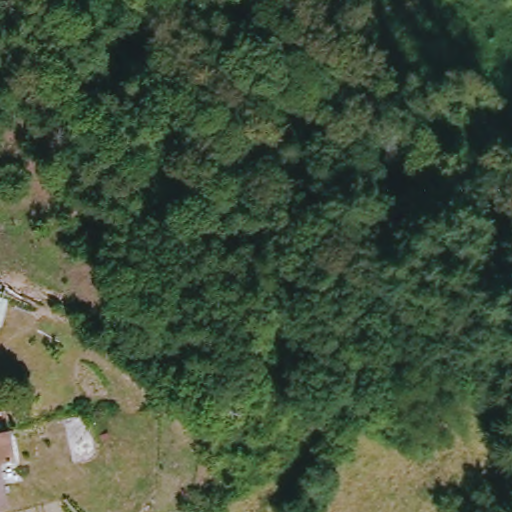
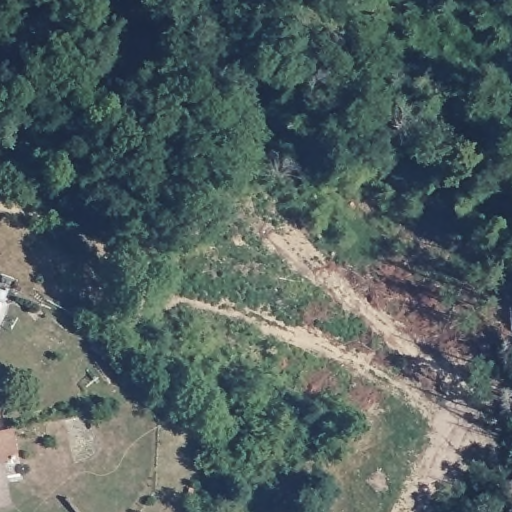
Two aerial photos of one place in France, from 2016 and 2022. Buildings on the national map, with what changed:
unchanged [(13,460),(0,463),(0,431),(10,429),(13,460)]
unchanged [(2,507),(0,508),(0,480),(2,507)]

